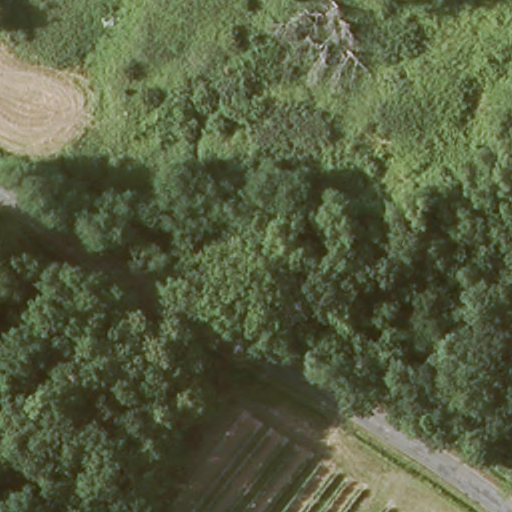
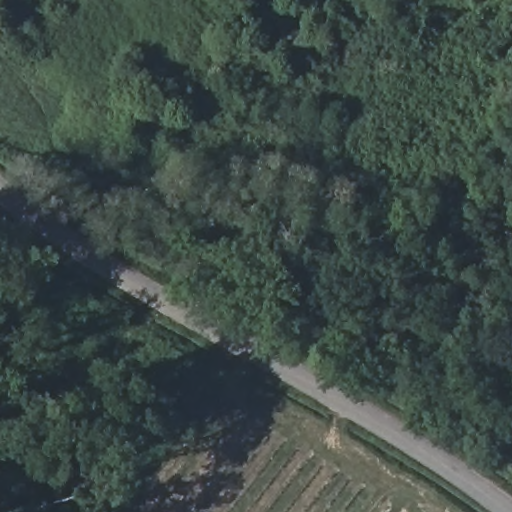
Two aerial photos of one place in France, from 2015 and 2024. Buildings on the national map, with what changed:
[]

